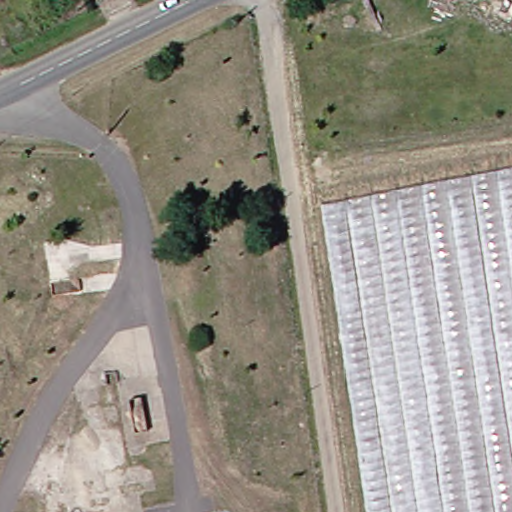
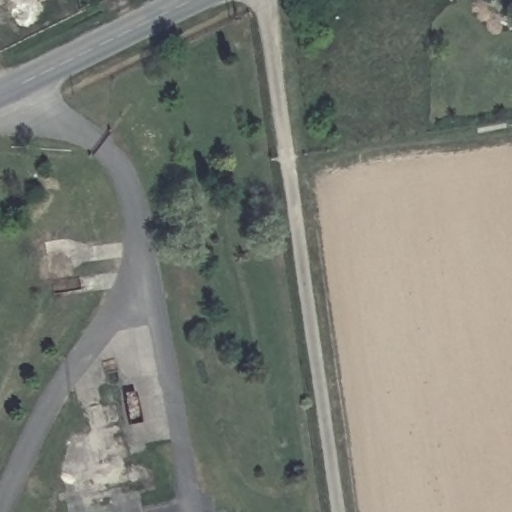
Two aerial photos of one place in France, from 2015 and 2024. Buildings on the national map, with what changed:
demolished [(512,166),(512,512),(367,512),(321,203),(512,166)]
demolished [(165,466),(169,487),(151,491),(146,471),(165,466)]
demolished [(140,485),(141,493),(128,495),(127,488),(140,485)]

